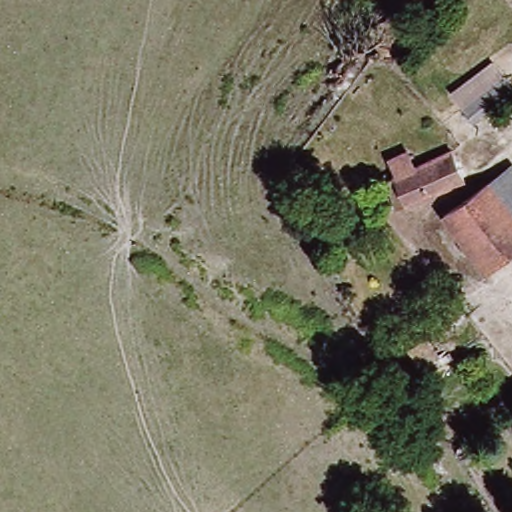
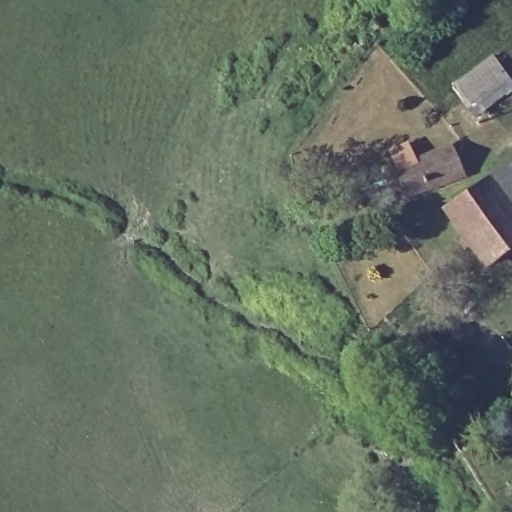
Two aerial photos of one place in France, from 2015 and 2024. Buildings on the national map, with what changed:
unchanged [(510,88),(471,116),(449,87),(487,55),(510,88)]
unchanged [(403,195),(391,168),(449,146),(458,173),(403,195)]
unchanged [(512,249),(490,266),(446,208),(502,164),(512,179),(512,249)]
unchanged [(424,377),(404,345),(423,334),(441,366),(424,377)]

